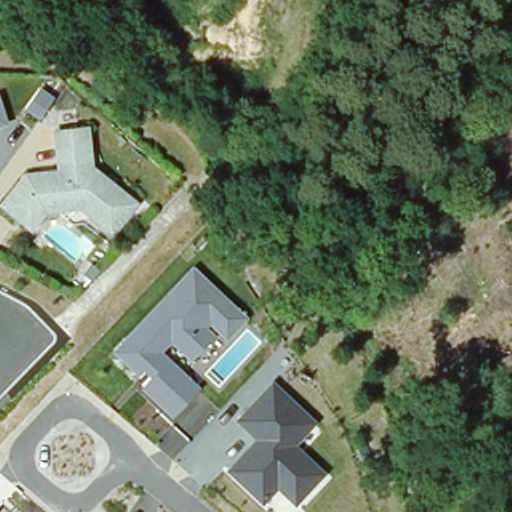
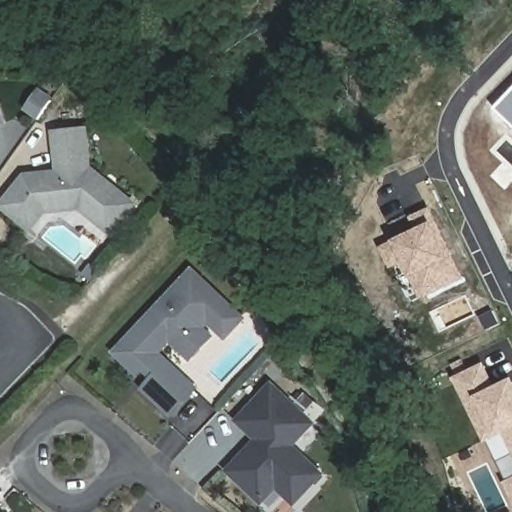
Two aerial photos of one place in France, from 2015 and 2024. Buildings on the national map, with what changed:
new [(512,125),(495,108),(512,89),(512,125)]
unchanged [(2,126),(0,127),(0,119),(2,126)]
unchanged [(117,206),(102,226),(69,201),(56,204),(57,209),(42,211),(27,229),(2,207),(26,179),(61,174),(55,134),(87,130),(92,169),(104,178),(126,194),(117,206)]
new [(392,241),(416,230),(409,218),(430,208),(465,279),(422,300),(411,278),(403,264),(391,270),(380,248),(392,241)]
unchanged [(141,389),(151,378),(144,373),(139,378),(111,351),(194,264),(248,319),(227,341),(208,325),(207,327),(216,336),(192,361),(172,344),(164,353),(202,387),(171,419),(141,389)]
new [(497,386),(512,378),(512,500),(504,483),(507,481),(488,441),(485,443),(452,378),(484,363),(497,386)]
unchanged [(317,422),(296,444),(326,471),(296,505),(277,488),(265,506),(227,472),(254,439),(236,420),(273,380),(317,422)]

